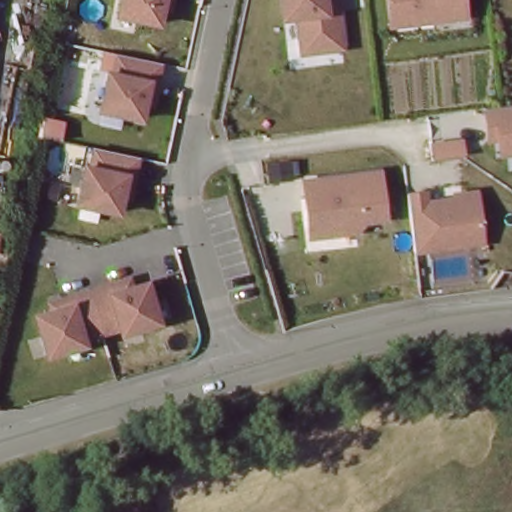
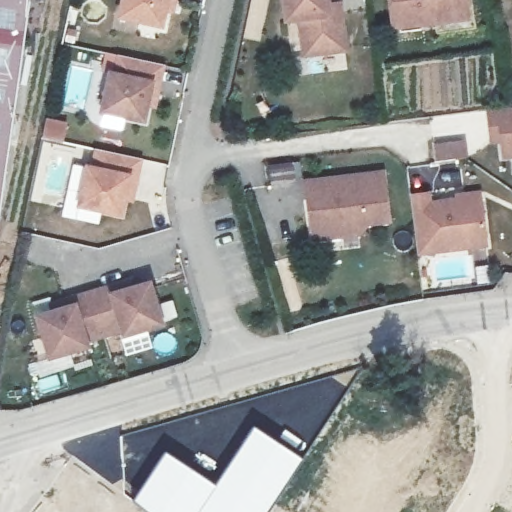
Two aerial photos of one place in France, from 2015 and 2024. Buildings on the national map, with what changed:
new [(0,202),(0,0),(27,0),(0,202)]
unchanged [(171,34),(121,21),(126,0),(180,0),(171,34)]
unchanged [(309,59),(304,29),(290,30),(286,0),(332,0),(334,11),(351,7),(356,55),(309,59)]
unchanged [(397,27),(394,0),(478,0),(480,20),(397,27)]
unchanged [(153,128),(106,117),(121,56),(166,67),(153,128)]
unchanged [(512,108),(512,157),(500,159),(498,142),(488,143),(488,110),(512,108)]
new [(468,137),(470,159),(436,162),(433,142),(468,137)]
unchanged [(129,222),(83,213),(95,147),(148,159),(129,222)]
unchanged [(390,221),(367,224),(361,236),(313,242),(306,181),(384,171),(390,221)]
unchanged [(431,191),(431,202),(454,201),(454,195),(483,192),(487,246),(418,256),(411,194),(431,191)]
unchanged [(51,362),(38,315),(156,283),(168,329),(51,362)]
new [(214,483),(253,425),(303,457),(266,512),(147,512),(131,501),(165,450),(214,483)]

